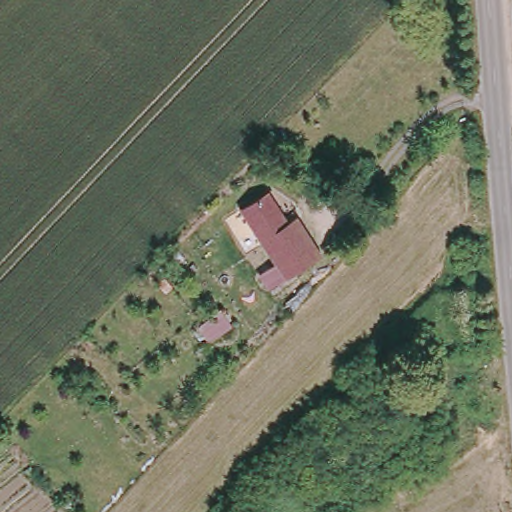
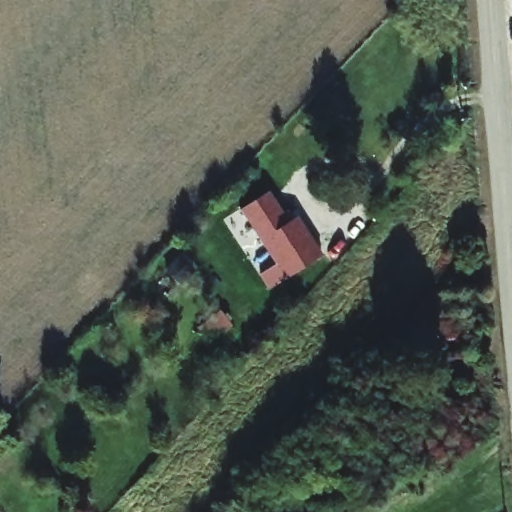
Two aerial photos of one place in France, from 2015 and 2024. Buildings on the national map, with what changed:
unchanged [(267,281),(284,272),(256,221),(282,207),(295,234),(312,226),(331,264),(292,287),(273,297),(267,281)]
unchanged [(474,293),(481,354),(460,357),(446,359),(440,298),(452,296),(474,293)]

